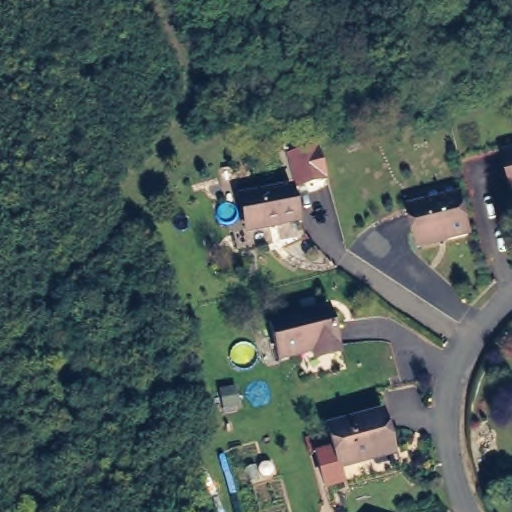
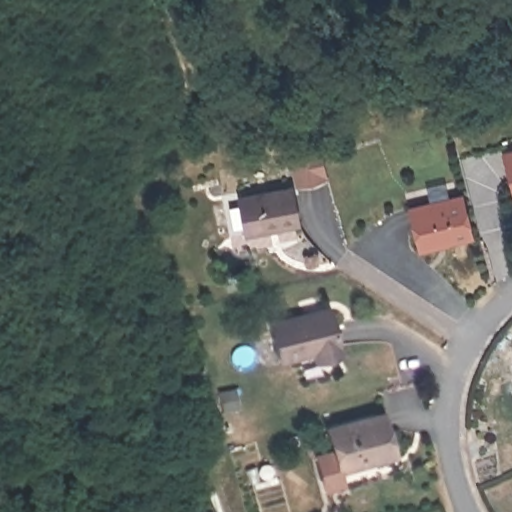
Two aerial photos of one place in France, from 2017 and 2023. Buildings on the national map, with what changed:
unchanged [(512,150),(512,187),(503,152),(512,150)]
unchanged [(241,205),(246,204),(294,194),(300,227),(253,237),(247,238),(241,205)]
unchanged [(463,195),(472,233),(423,244),(415,206),(463,195)]
unchanged [(330,308),(341,349),(316,355),(315,351),(282,359),(273,323),(330,308)]
unchanged [(364,466),(342,472),(330,432),(385,417),(395,451),(397,457),(364,466)]

